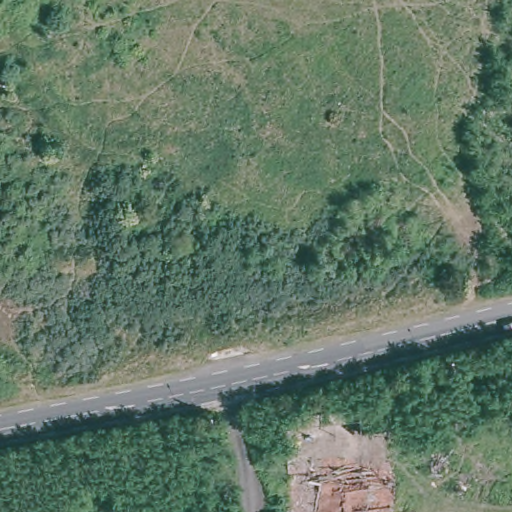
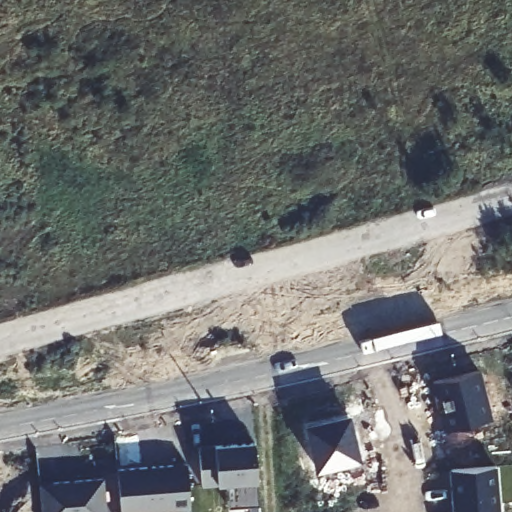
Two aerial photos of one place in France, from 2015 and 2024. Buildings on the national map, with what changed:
new [(492,416),(445,430),(431,381),(480,369),(492,416)]
demolished [(277,412),(353,405),(355,430),(280,438),(277,412)]
new [(360,458),(315,469),(303,424),(348,413),(360,458)]
new [(257,481),(257,503),(227,505),(227,484),(218,484),(202,486),(198,444),(217,442),(255,442),(257,481)]
new [(190,509),(120,512),(118,465),(185,464),(190,509)]
new [(454,512),(450,468),(497,467),(499,512),(454,512)]
new [(53,486),(104,482),(106,512),(42,512),(40,491),(53,489),(53,486)]

